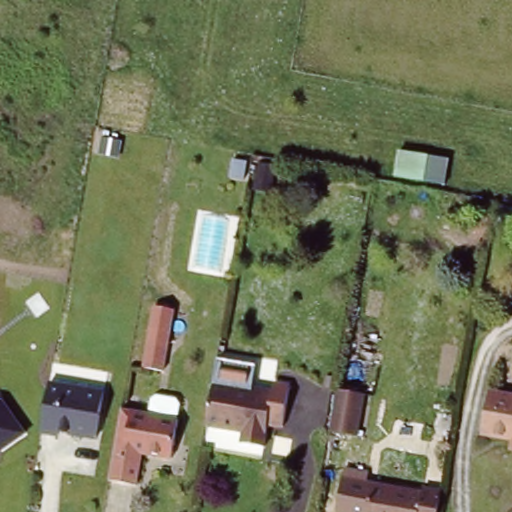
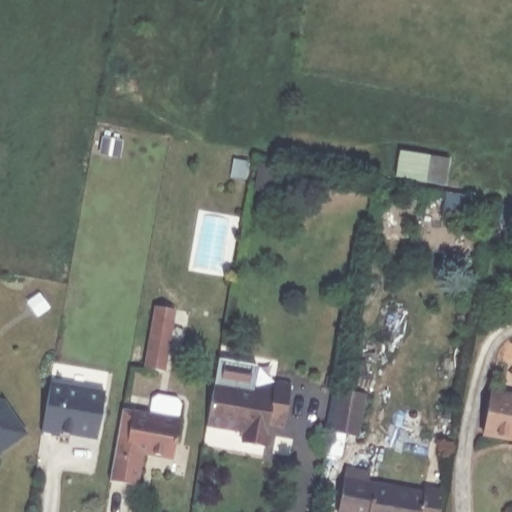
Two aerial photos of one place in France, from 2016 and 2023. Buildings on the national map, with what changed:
unchanged [(175,309),(163,370),(142,367),(153,305),(175,309)]
unchanged [(216,384),(275,394),(277,386),(294,390),(286,426),(270,423),(266,446),(244,443),(245,432),(209,426),(216,384)]
unchanged [(48,385),(101,395),(93,439),(60,436),(58,440),(39,436),(48,385)]
unchanged [(496,388),(512,391),(512,433),(488,430),(496,388)]
unchanged [(331,428),(338,389),(368,394),(362,433),(331,428)]
unchanged [(5,401),(25,433),(0,451),(0,400),(5,401)]
unchanged [(121,413),(180,422),(173,460),(141,456),(136,488),(108,484),(121,413)]
unchanged [(445,512),(348,512),(338,510),(345,463),(370,469),(370,476),(423,487),(447,493),(445,512)]

